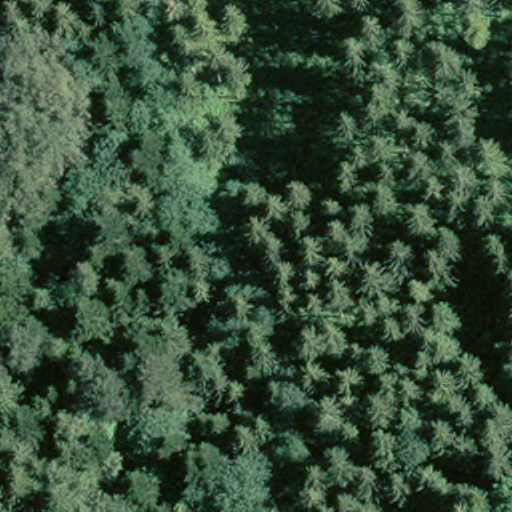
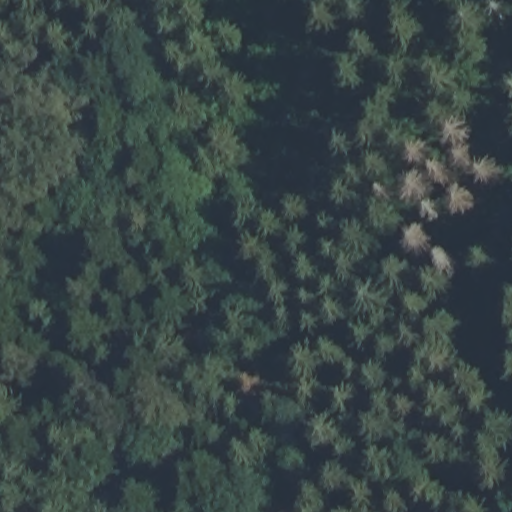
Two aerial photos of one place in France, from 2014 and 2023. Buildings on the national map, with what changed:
[]

